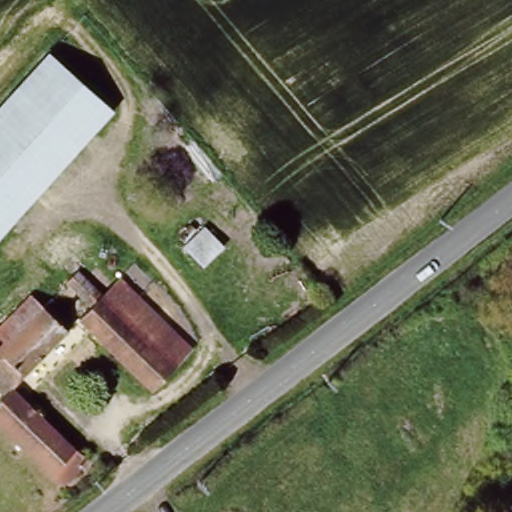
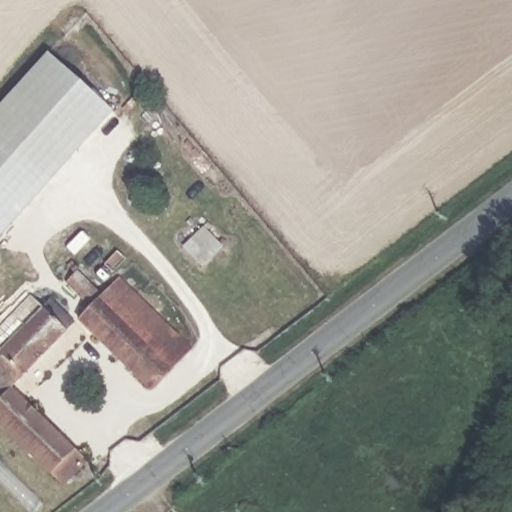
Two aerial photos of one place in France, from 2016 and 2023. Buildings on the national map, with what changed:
unchanged [(55,58),(115,114),(0,240),(0,118),(55,58)]
unchanged [(206,215),(221,233),(203,252),(187,233),(206,215)]
unchanged [(125,372),(75,322),(85,310),(63,289),(75,276),(96,297),(112,283),(171,337),(183,347),(168,366),(146,393),(125,372)]
unchanged [(32,303),(41,310),(48,303),(71,328),(11,391),(85,465),(61,490),(0,432),(0,402),(3,398),(0,395),(0,335),(32,303)]

